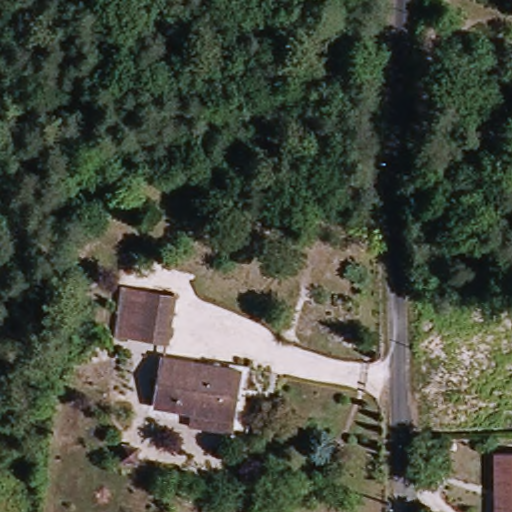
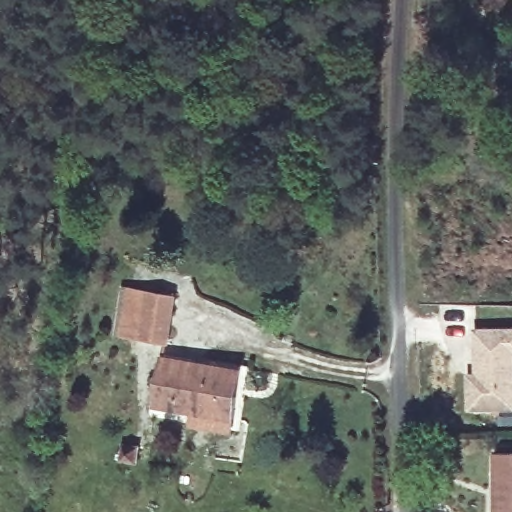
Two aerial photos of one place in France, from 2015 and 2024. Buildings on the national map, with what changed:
unchanged [(136,286),(188,296),(179,339),(128,329),(136,286)]
new [(467,411),(468,373),(476,372),(474,328),(512,327),(512,409),(467,411)]
unchanged [(202,423),(204,413),(164,404),(173,352),(252,367),(242,419),(239,432),(202,423)]
unchanged [(126,431),(140,433),(137,450),(123,448),(126,431)]
unchanged [(501,491),(493,491),(493,455),(512,455),(512,512),(500,512),(501,491)]

